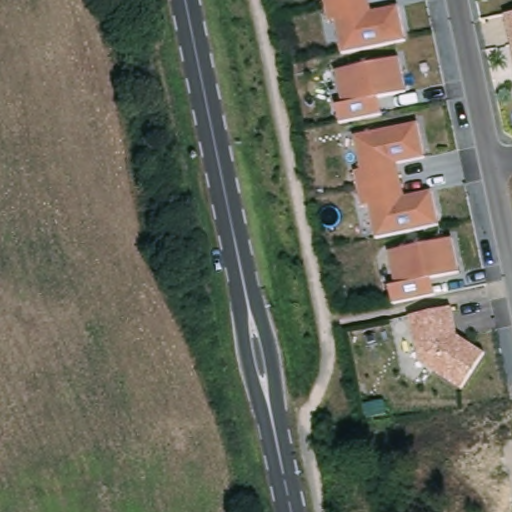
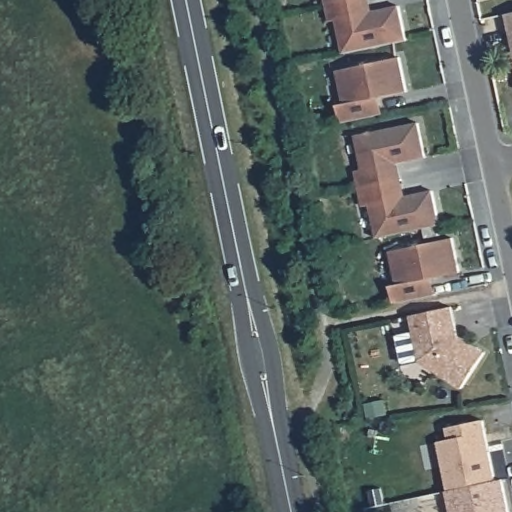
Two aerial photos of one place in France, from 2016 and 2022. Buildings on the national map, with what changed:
unchanged [(328,19),(324,0),(370,0),(372,9),(399,4),(406,37),(342,50),(335,18),(328,19)]
unchanged [(512,40),(507,13),(512,12),(512,40)]
unchanged [(336,102),(344,101),(337,68),(401,54),(408,91),(381,96),(383,112),(340,120),(336,102)]
unchanged [(368,205),(362,206),(353,168),(361,166),(356,136),(417,122),(425,157),(397,162),(405,195),(436,188),(442,223),(375,237),(368,205)]
unchanged [(387,283),(397,281),(388,250),(454,235),(460,272),(432,277),(435,291),(392,301),(387,283)]
unchanged [(454,306),(459,330),(487,348),(465,386),(419,358),(410,314),(454,306)]
new [(447,490),(437,442),(447,439),(445,427),(483,420),(496,480),(447,490)]
new [(450,509),(446,491),(502,479),(508,512),(450,512),(450,509)]

